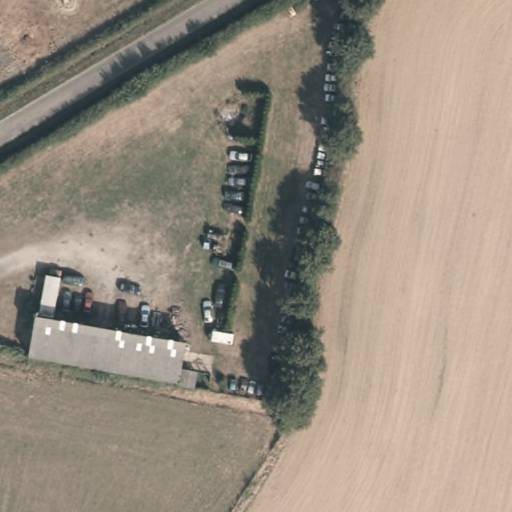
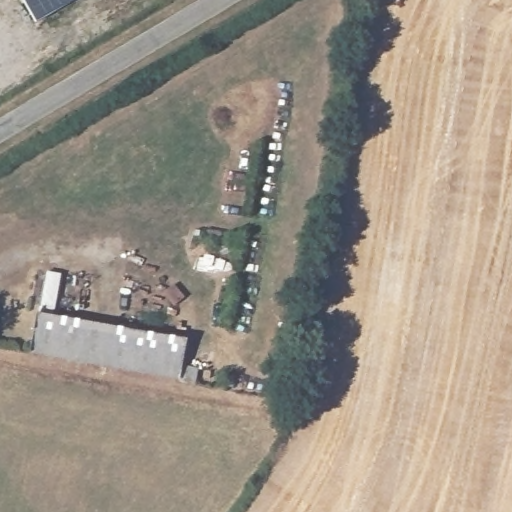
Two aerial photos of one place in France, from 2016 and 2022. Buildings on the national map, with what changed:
new [(35,22),(21,0),(73,0),(35,22)]
unchanged [(170,332),(162,374),(15,345),(24,306),(170,332)]

